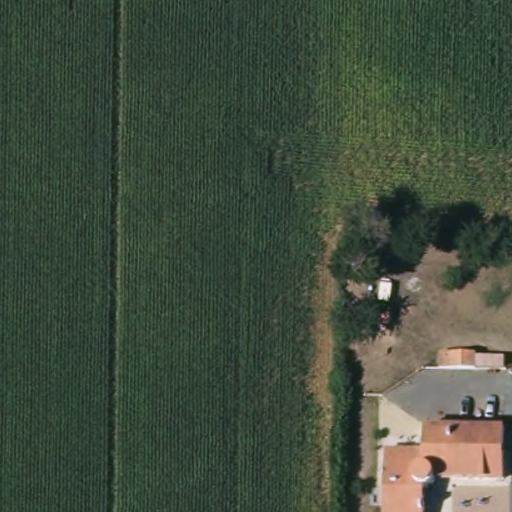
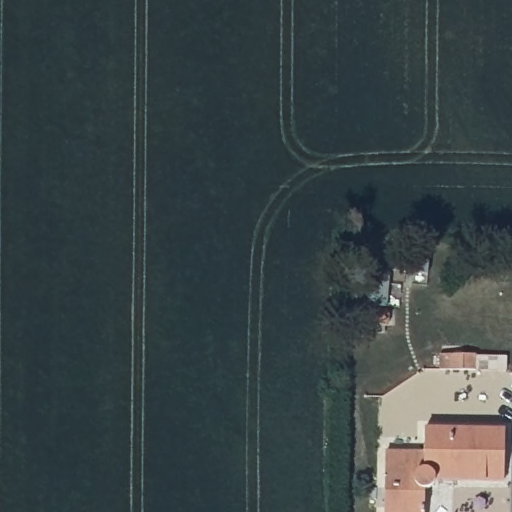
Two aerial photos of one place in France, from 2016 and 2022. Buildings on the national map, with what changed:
unchanged [(512,367),(512,384),(497,383),(497,366),(512,367)]
unchanged [(429,449),(430,426),(508,428),(508,478),(438,480),(429,488),(427,512),(387,512),(388,448),(429,449)]

